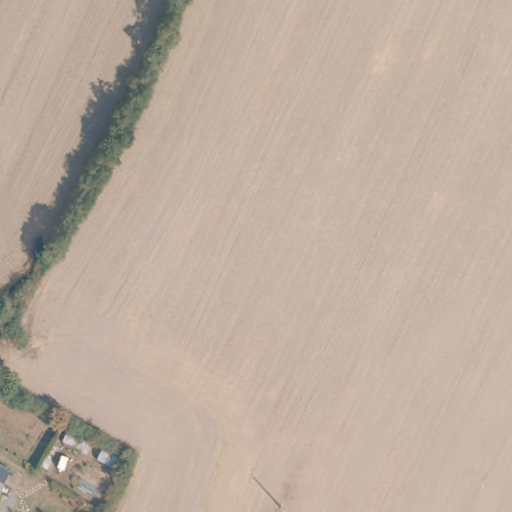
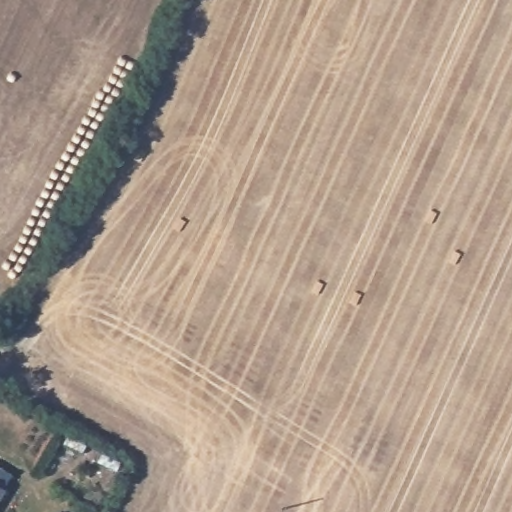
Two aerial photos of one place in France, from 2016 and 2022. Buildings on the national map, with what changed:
unchanged [(10,490),(0,504),(0,483),(10,490)]

